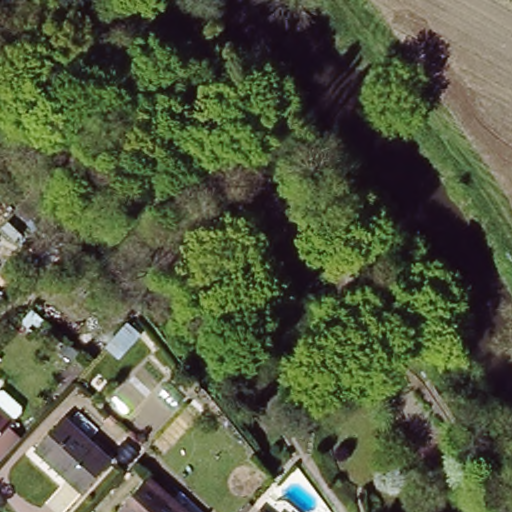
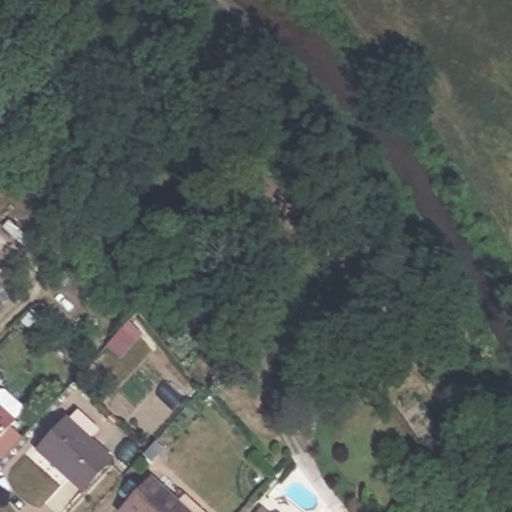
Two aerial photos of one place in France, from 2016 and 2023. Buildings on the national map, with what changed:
unchanged [(125,328),(136,339),(119,357),(107,347),(125,328)]
unchanged [(0,434),(0,406),(14,420),(0,434)]
unchanged [(32,453),(62,422),(107,463),(77,494),(32,453)]
unchanged [(172,505),(181,496),(199,512),(125,512),(150,486),(172,505)]
unchanged [(264,512),(259,512),(261,510),(264,512)]

